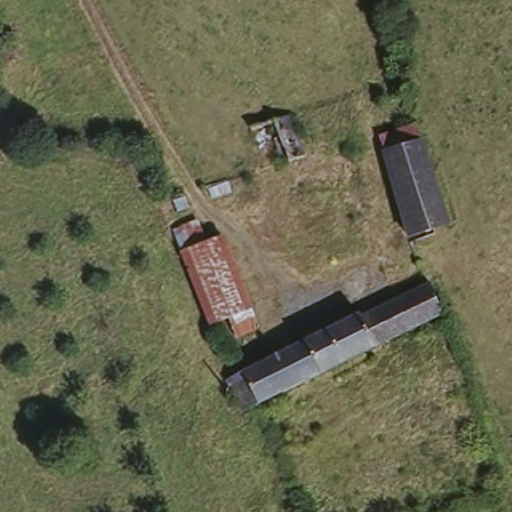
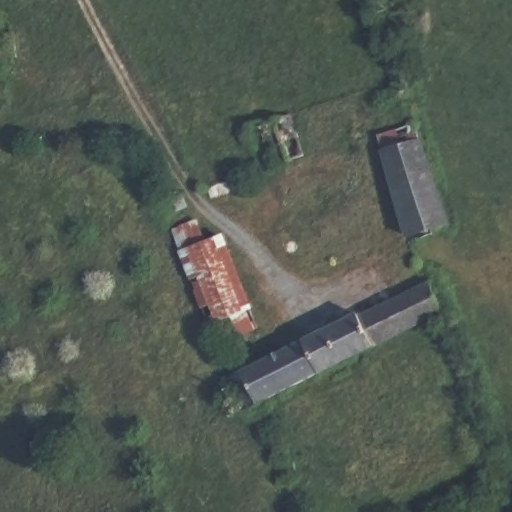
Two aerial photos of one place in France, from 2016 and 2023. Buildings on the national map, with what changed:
unchanged [(303,156),(284,163),(271,119),(291,113),(303,156)]
unchanged [(408,238),(384,147),(379,129),(416,119),(421,139),(447,225),(408,238)]
unchanged [(221,233),(249,303),(213,318),(184,249),(221,233)]
unchanged [(238,404),(224,367),(232,363),(366,311),(368,316),(421,293),(433,289),(443,320),(250,399),(238,404)]

